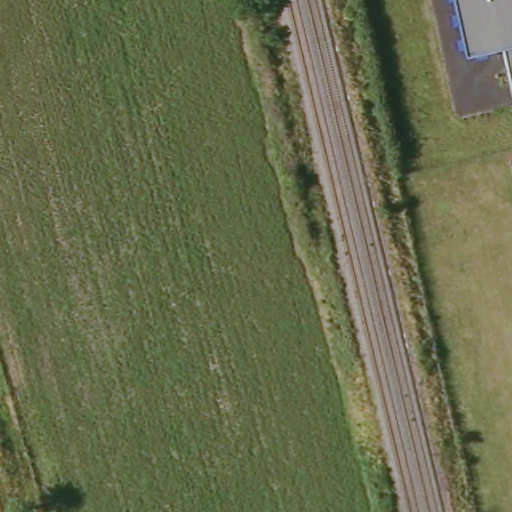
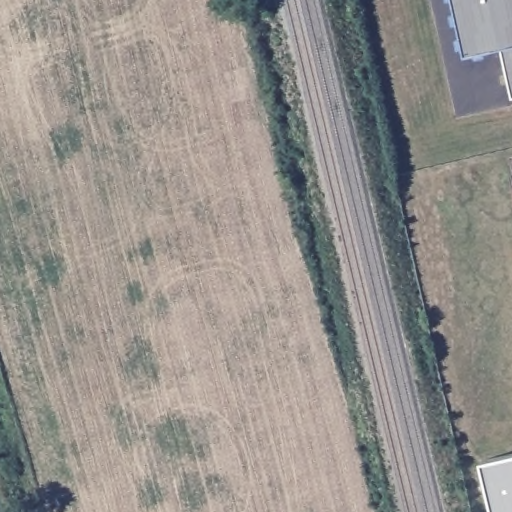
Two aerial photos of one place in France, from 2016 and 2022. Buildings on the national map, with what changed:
unchanged [(470,58),(456,0),(512,0),(512,80),(505,50),(470,58)]
new [(512,453),(512,512),(492,512),(480,461),(512,453)]

